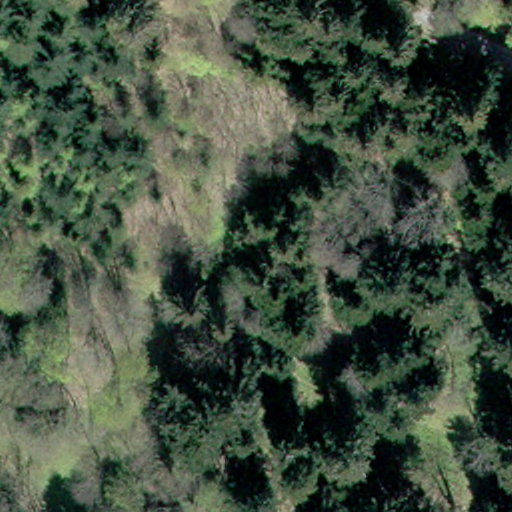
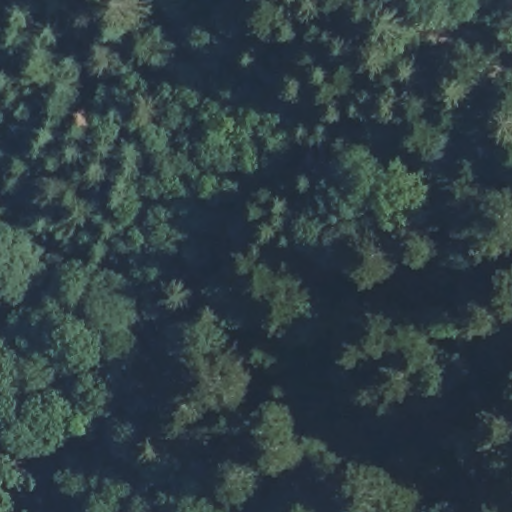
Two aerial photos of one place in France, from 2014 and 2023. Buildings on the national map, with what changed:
[]

